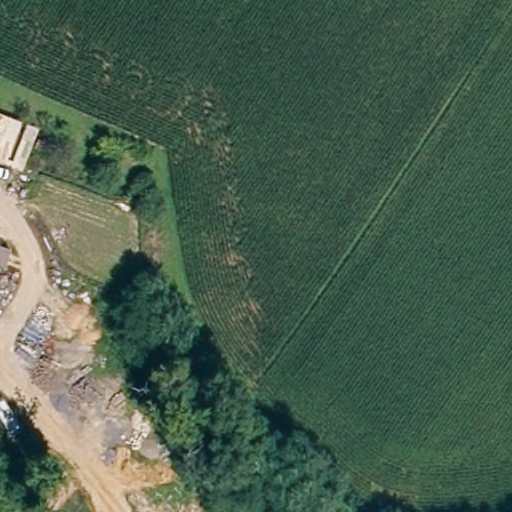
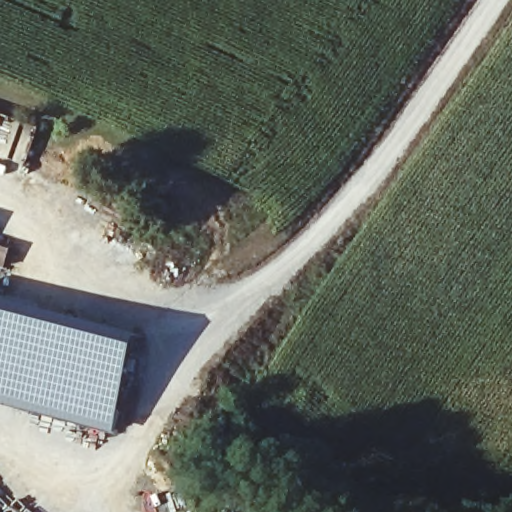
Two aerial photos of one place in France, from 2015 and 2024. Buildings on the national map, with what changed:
unchanged [(12,249),(6,270),(0,268),(0,245),(12,249)]
new [(143,335),(118,433),(0,403),(0,297),(143,335)]

